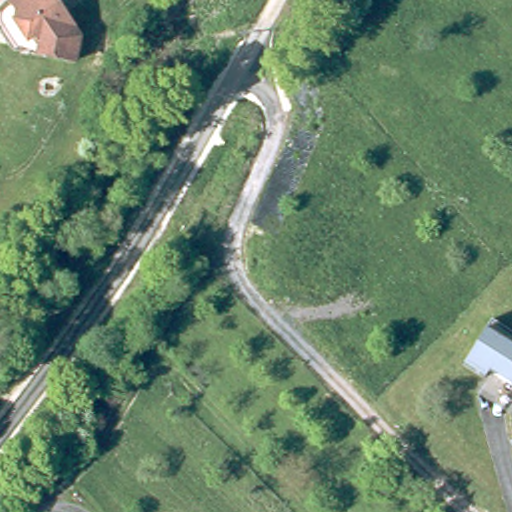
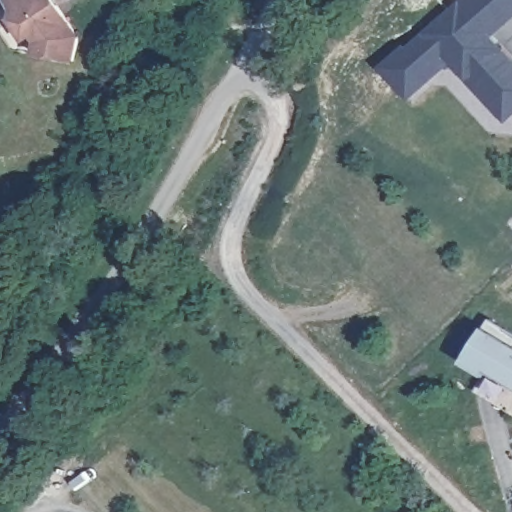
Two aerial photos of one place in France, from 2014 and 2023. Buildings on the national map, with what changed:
unchanged [(18,51),(3,30),(2,28),(1,24),(1,19),(3,14),(15,5),(14,2),(17,0),(58,0),(84,38),(83,43),(80,62),(72,60),(21,52),(18,51)]
new [(512,59),(512,117),(505,123),(452,65),(411,101),(381,67),(423,34),(461,0),(512,0),(512,19),(493,37),(503,48),(512,59)]
unchanged [(492,316),(512,330),(512,385),(489,371),(486,378),(464,365),(492,316)]

